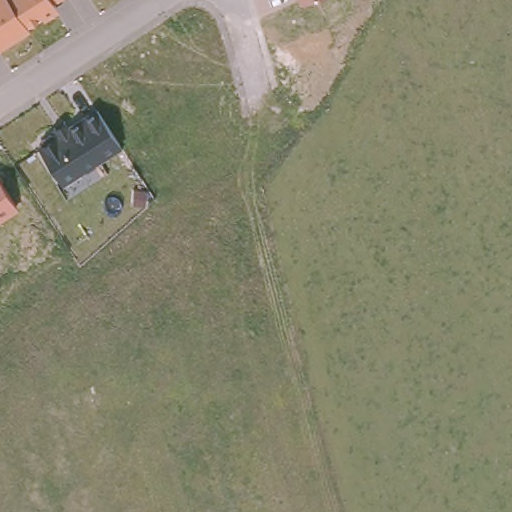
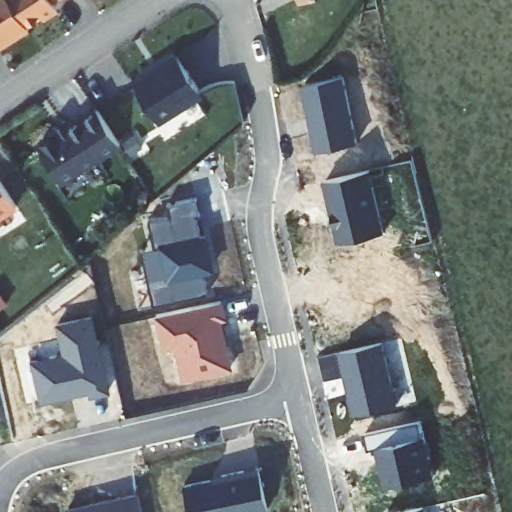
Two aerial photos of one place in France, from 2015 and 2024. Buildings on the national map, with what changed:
unchanged [(59,12),(44,21),(42,17),(27,26),(29,30),(0,47),(0,0),(59,0),(54,3),(59,12)]
new [(176,51),(201,89),(160,116),(135,78),(176,51)]
new [(301,86),(345,77),(360,142),(317,152),(301,86)]
unchanged [(51,130),(65,121),(69,125),(94,108),(120,147),(63,186),(37,145),(54,134),(51,130)]
new [(325,179),(372,169),(387,231),(339,242),(325,179)]
unchanged [(0,218),(0,180),(17,207),(0,218)]
new [(207,292),(152,304),(140,252),(159,242),(154,222),(170,217),(167,206),(192,201),(200,232),(206,234),(215,269),(202,272),(207,292)]
new [(182,380),(175,347),(162,350),(154,316),(223,300),(227,318),(223,319),(233,368),(182,380)]
new [(30,360),(62,354),(55,323),(93,315),(110,391),(90,396),(88,392),(40,402),(30,360)]
new [(384,341),(399,405),(355,415),(340,351),(384,341)]
new [(377,447),(370,448),(366,432),(422,420),(436,475),(386,487),(377,447)]
new [(217,475),(257,466),(267,509),(254,512),(188,512),(182,486),(211,479),(217,475)]
new [(65,510),(137,493),(142,512),(65,512),(65,510)]
new [(417,509),(417,512),(404,512),(417,509)]

